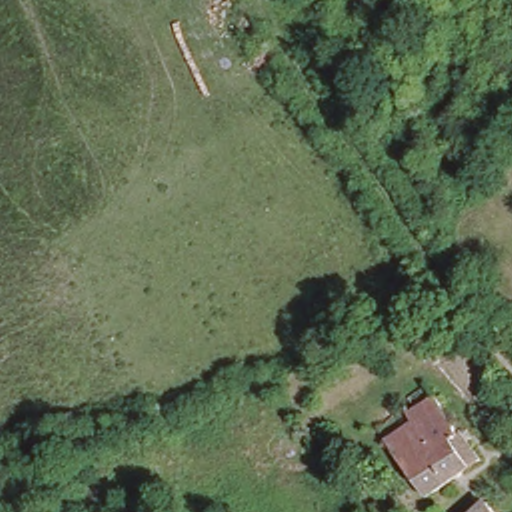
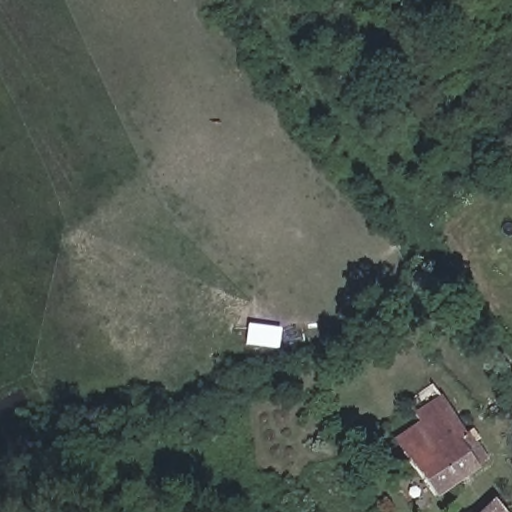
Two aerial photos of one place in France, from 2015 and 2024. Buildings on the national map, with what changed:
unchanged [(422,379),(482,455),(435,491),(430,486),(426,490),(420,483),(425,480),(396,446),(425,424),(404,392),(422,379)]
unchanged [(499,512),(484,512),(493,505),(499,512)]

